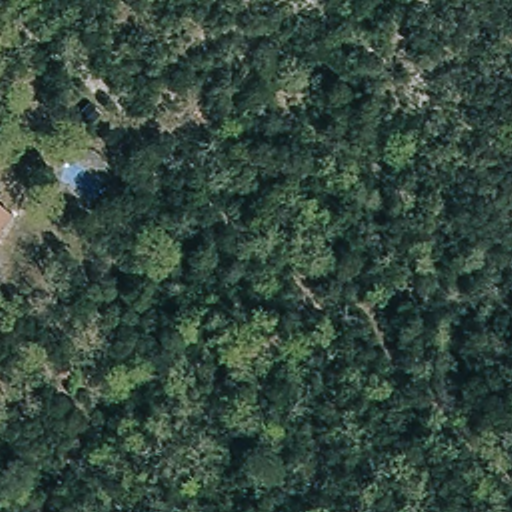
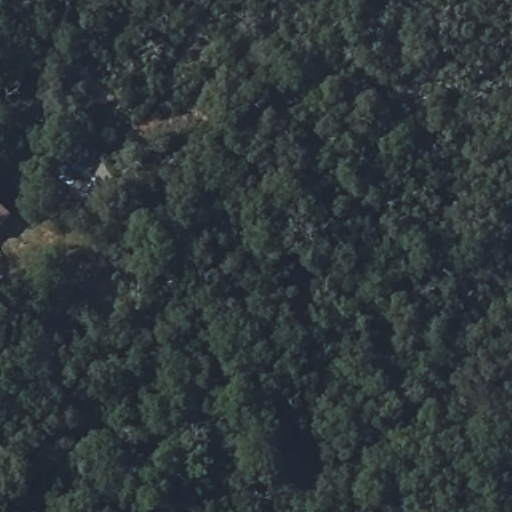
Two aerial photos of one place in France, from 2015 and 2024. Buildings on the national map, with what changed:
unchanged [(13,216),(0,231),(0,207),(13,216)]

